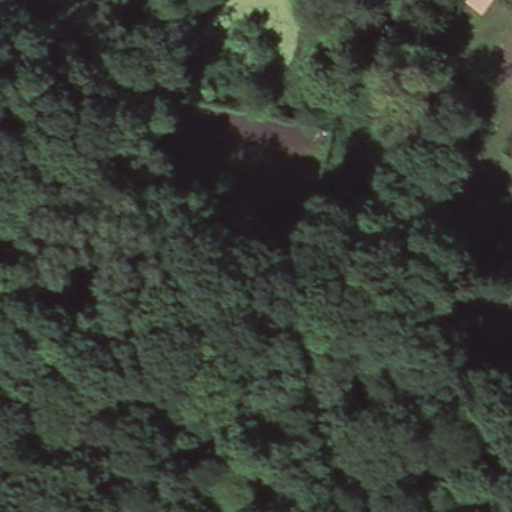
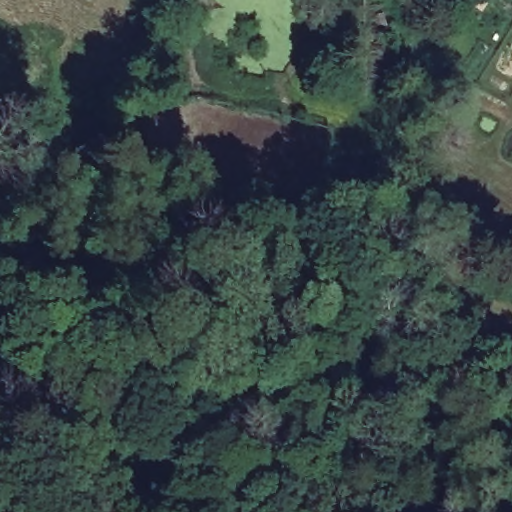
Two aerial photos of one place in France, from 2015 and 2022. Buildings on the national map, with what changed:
unchanged [(385,43),(367,48),(364,37),(371,35),(366,21),(378,18),(385,43)]

